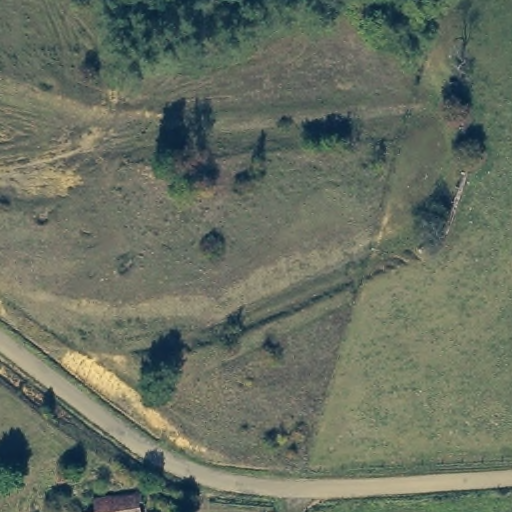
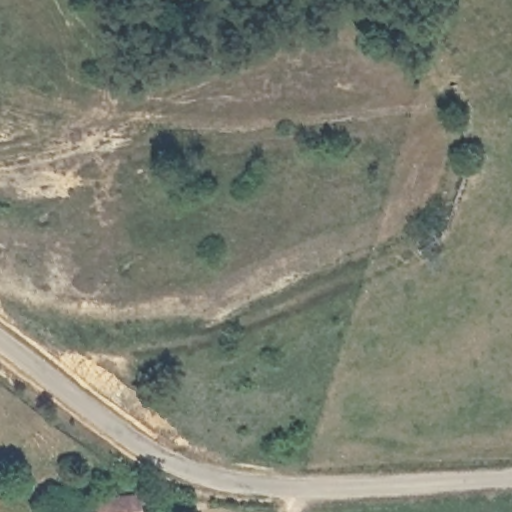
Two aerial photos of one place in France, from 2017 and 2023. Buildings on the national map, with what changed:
unchanged [(144,512),(91,512),(96,512),(95,497),(140,492),(144,512)]

